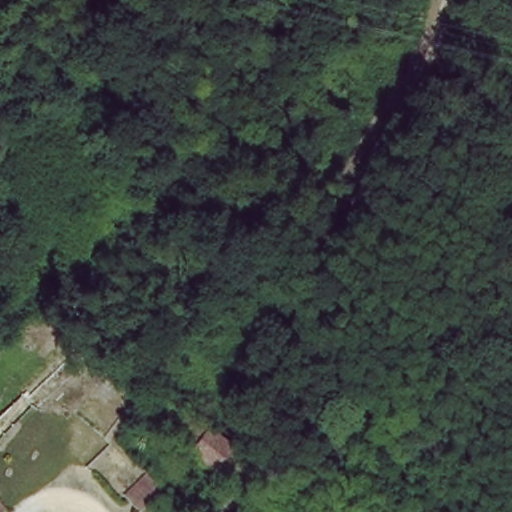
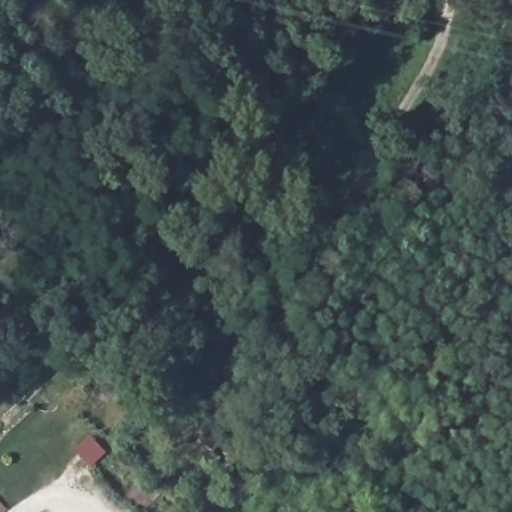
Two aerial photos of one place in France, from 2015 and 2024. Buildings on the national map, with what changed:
unchanged [(151,408),(148,412),(143,408),(146,403),(151,408)]
unchanged [(186,449),(176,440),(193,420),(203,427),(226,444),(237,453),(238,453),(220,476),(186,449)]

